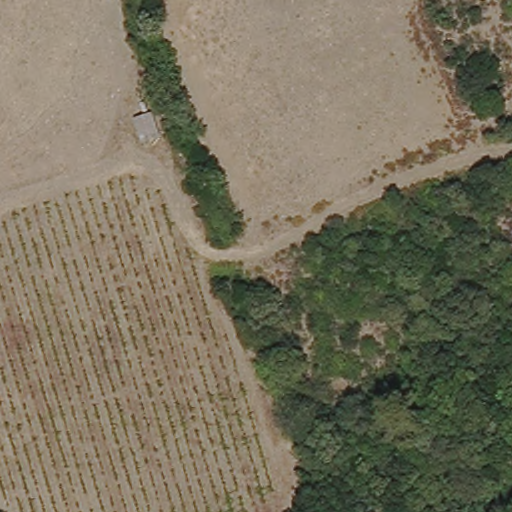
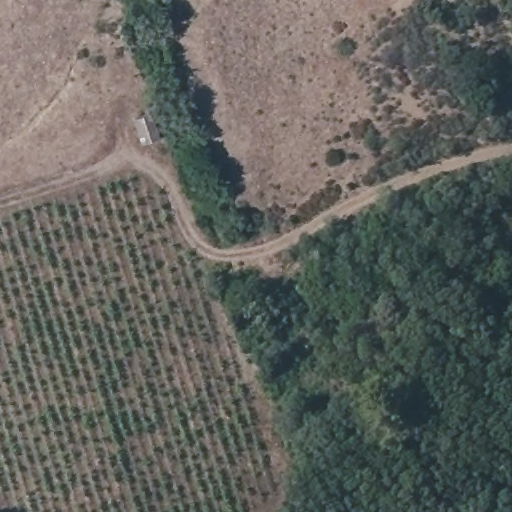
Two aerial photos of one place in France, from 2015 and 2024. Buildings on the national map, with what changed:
unchanged [(133,142),(127,120),(141,115),(148,137),(133,142)]

